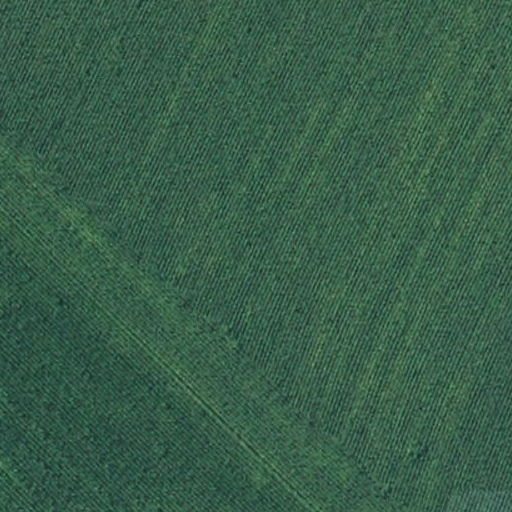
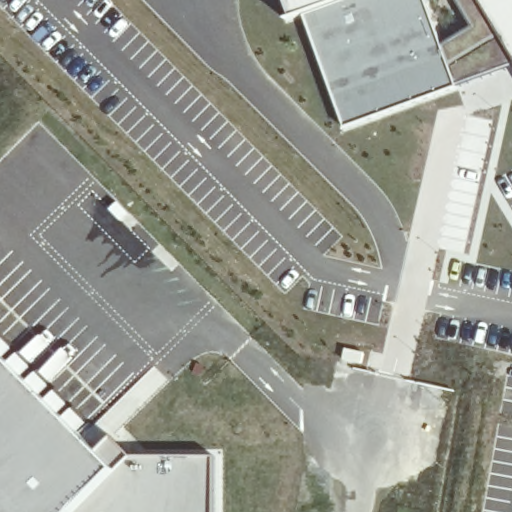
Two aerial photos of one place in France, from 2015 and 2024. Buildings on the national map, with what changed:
new [(289,19),(283,0),(341,0),(301,15),(289,19)]
new [(426,0),(441,44),(456,87),(407,106),(341,127),(301,15),(341,0),(426,0)]
new [(512,64),(456,87),(441,44),(471,27),(456,0),(478,0),(512,59),(512,64)]
new [(512,0),(512,59),(478,0),(512,0)]
new [(11,349),(4,356),(45,396),(50,391),(85,423),(78,431),(96,449),(108,436),(129,455),(115,470),(78,512),(0,512),(0,338),(11,349)]
new [(115,470),(129,455),(214,456),(213,512),(78,512),(115,470)]

